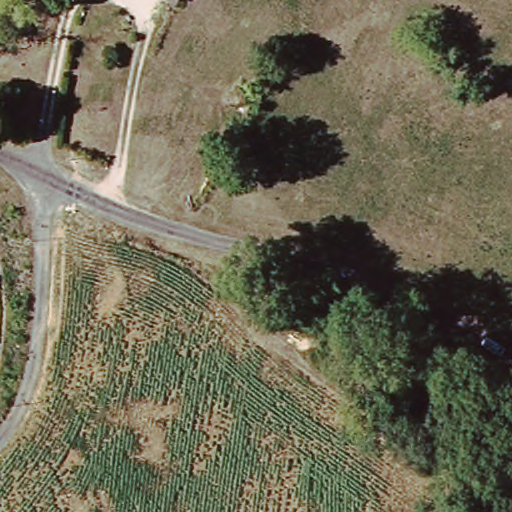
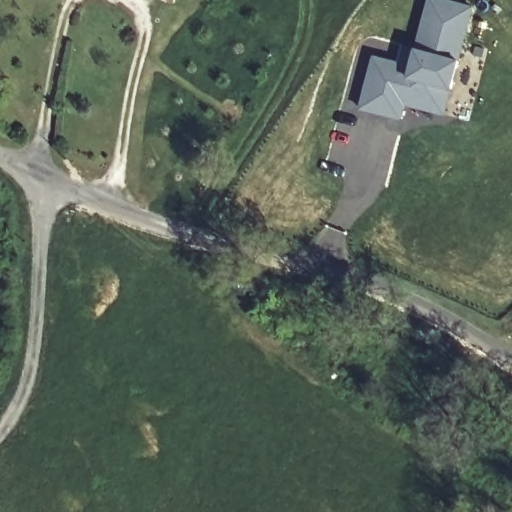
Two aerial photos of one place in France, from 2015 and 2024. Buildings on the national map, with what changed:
unchanged [(166,0),(174,0),(172,3),(166,0)]
new [(402,119),(360,108),(373,55),(400,61),(403,45),(416,47),(428,0),(451,0),(473,6),(460,59),(452,90),(446,115),(407,104),(402,119)]

